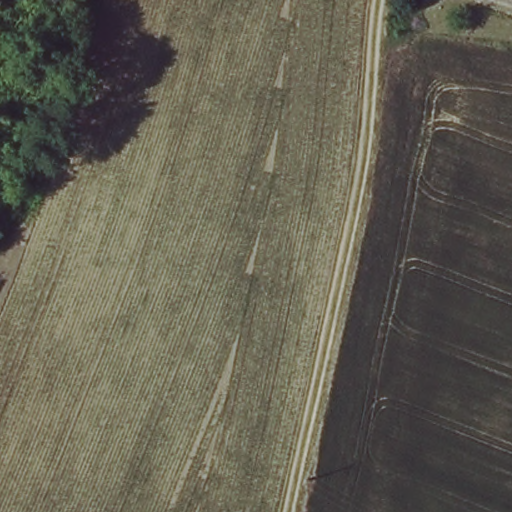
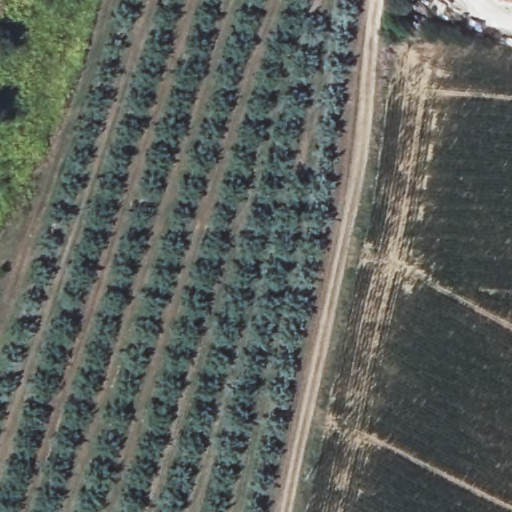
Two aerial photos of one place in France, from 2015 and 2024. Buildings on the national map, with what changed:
unchanged [(486,0),(512,0),(491,4),(486,0)]

